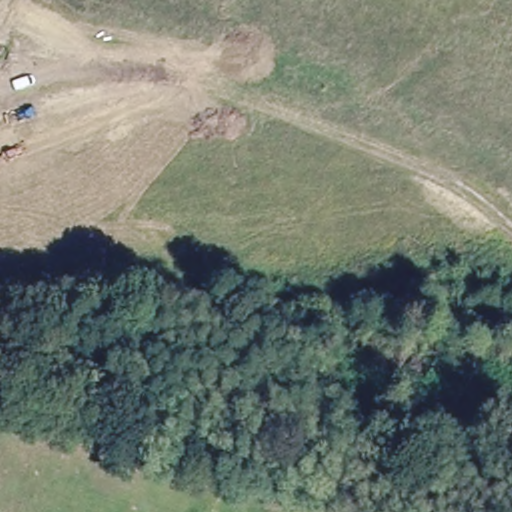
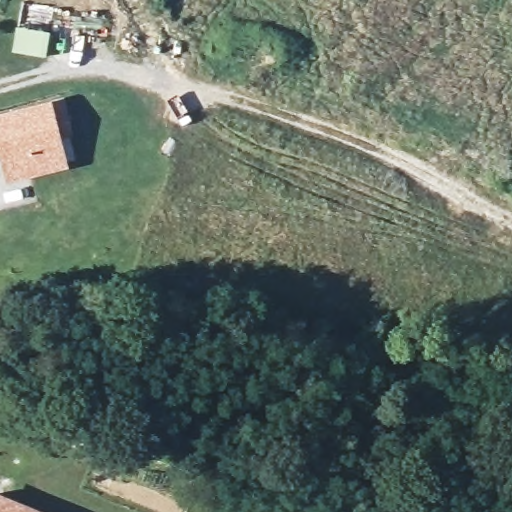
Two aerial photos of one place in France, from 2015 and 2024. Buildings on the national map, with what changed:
new [(73,133),(59,135),(67,167),(8,181),(1,155),(0,155),(0,113),(50,101),(62,96),(73,133)]
new [(49,512),(0,512),(0,493),(49,512)]

